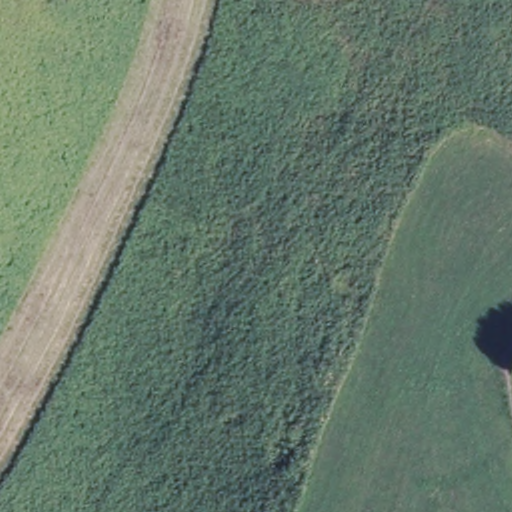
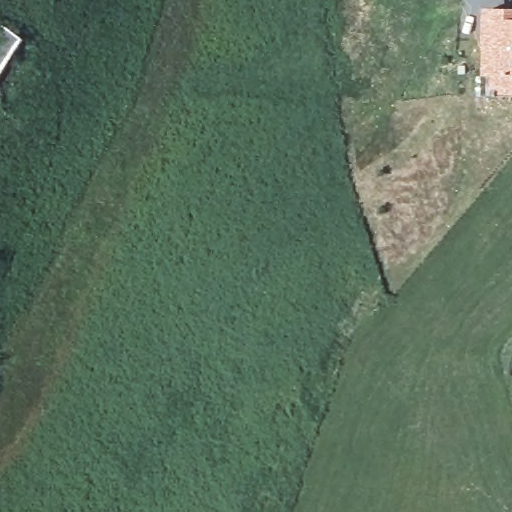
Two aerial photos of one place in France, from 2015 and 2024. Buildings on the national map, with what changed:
new [(512,19),(512,95),(503,95),(502,96),(500,96),(500,94),(491,94),(492,79),(483,79),(484,52),(485,18),(512,19)]

